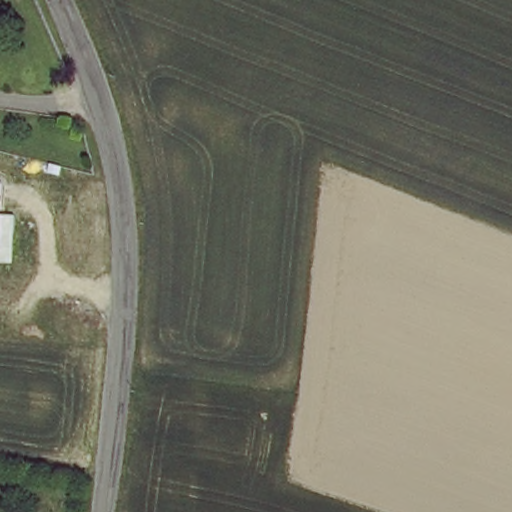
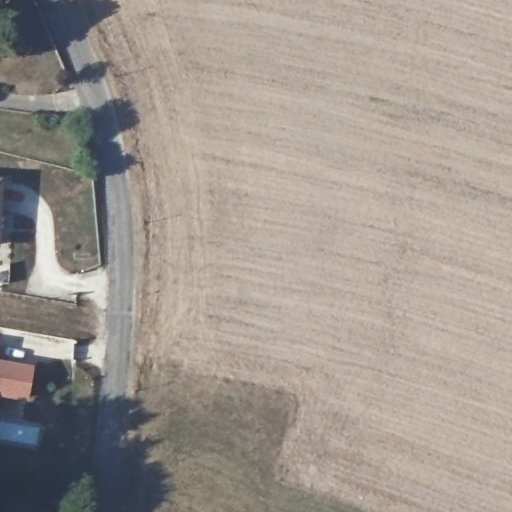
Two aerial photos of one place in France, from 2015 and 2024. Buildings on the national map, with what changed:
unchanged [(0,220),(0,178),(1,179),(0,220)]
new [(27,400),(0,396),(0,360),(33,365),(27,400)]

